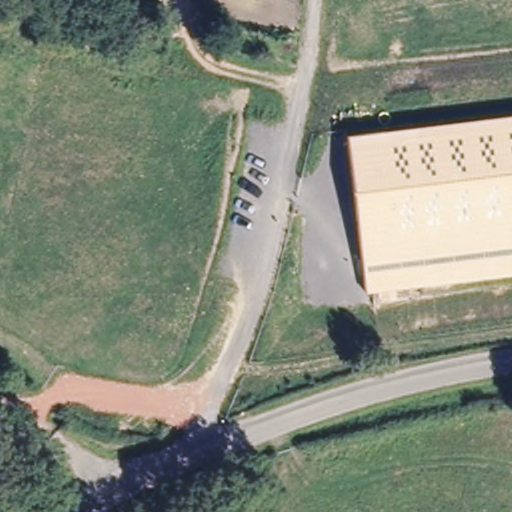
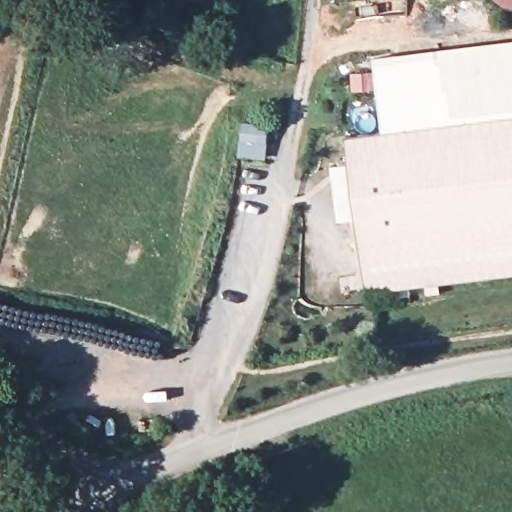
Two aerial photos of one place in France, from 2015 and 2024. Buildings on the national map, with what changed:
new [(497,1),(496,0),(512,0),(512,10),(505,6),(497,1)]
new [(512,39),(512,116),(383,131),(373,55),(512,39)]
unchanged [(512,272),(367,289),(347,136),(512,116),(512,272)]
new [(337,220),(330,165),(351,163),(358,219),(337,220)]

